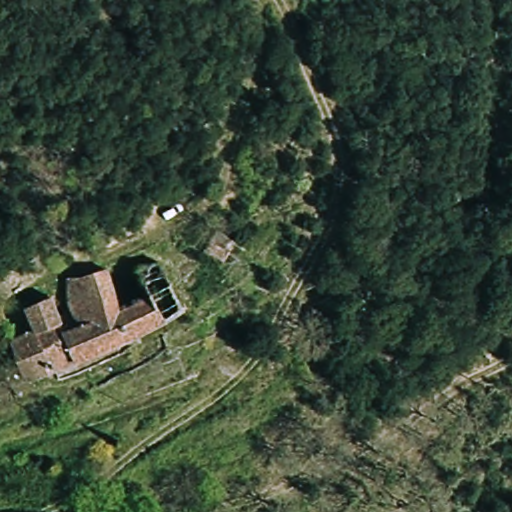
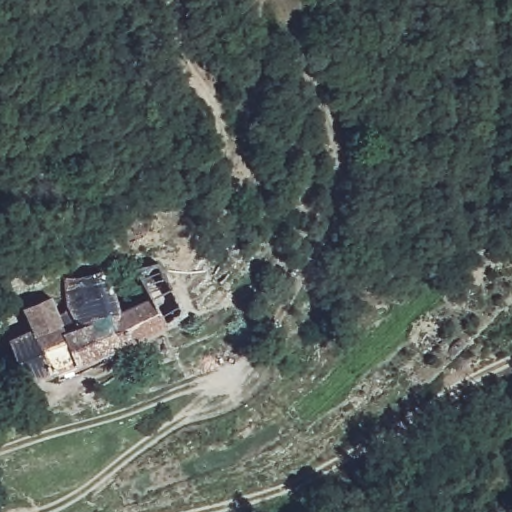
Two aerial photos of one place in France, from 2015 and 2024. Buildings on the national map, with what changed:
unchanged [(135,260),(160,259),(175,305),(153,315),(142,280),(135,260)]
unchanged [(113,289),(142,280),(153,315),(110,354),(52,383),(50,380),(39,385),(36,379),(31,381),(14,333),(31,325),(29,307),(58,292),(62,305),(85,297),(82,276),(108,265),(113,289)]

